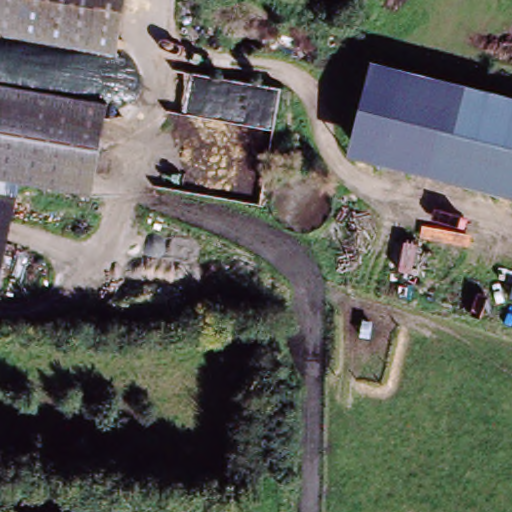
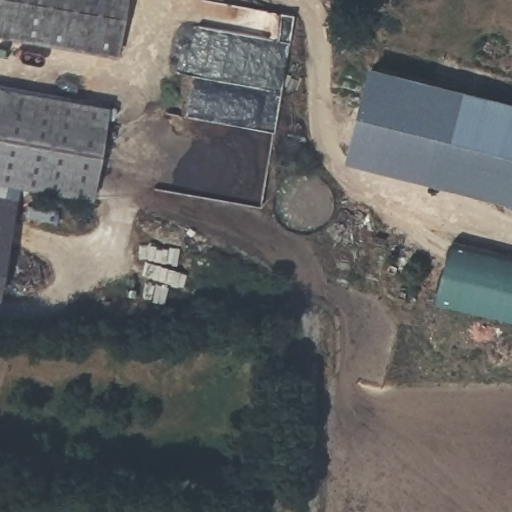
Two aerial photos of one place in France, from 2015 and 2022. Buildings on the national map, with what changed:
unchanged [(128,0),(124,25),(119,53),(33,40),(25,93),(111,106),(98,198),(0,182),(0,0),(128,0)]
unchanged [(376,69),(512,106),(512,203),(351,159),(376,69)]
unchanged [(18,202),(1,296),(0,295),(0,199),(18,202)]
new [(512,318),(437,298),(454,241),(512,256),(512,318)]

